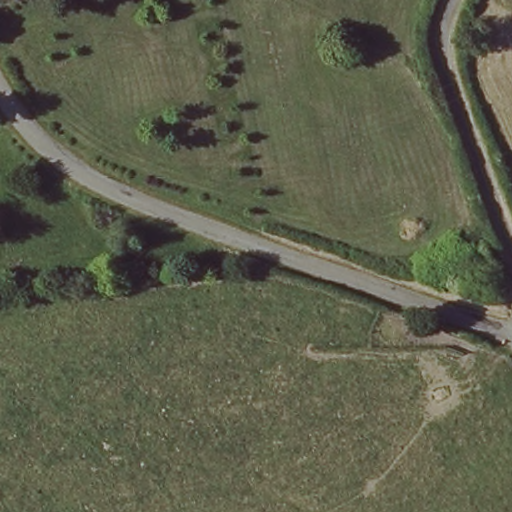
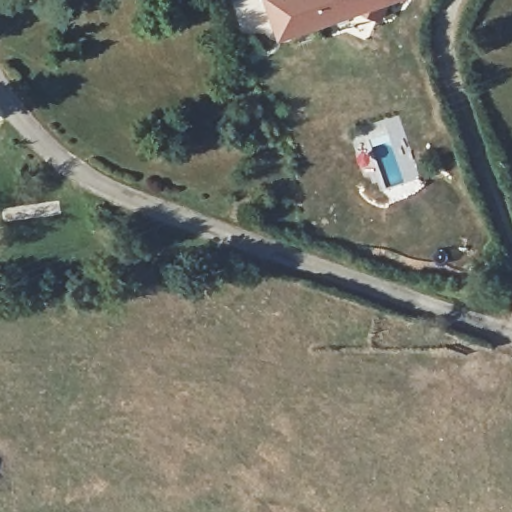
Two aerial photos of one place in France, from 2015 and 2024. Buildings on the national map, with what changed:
new [(261,0),(387,0),(377,21),(351,10),(274,36),(261,0)]

